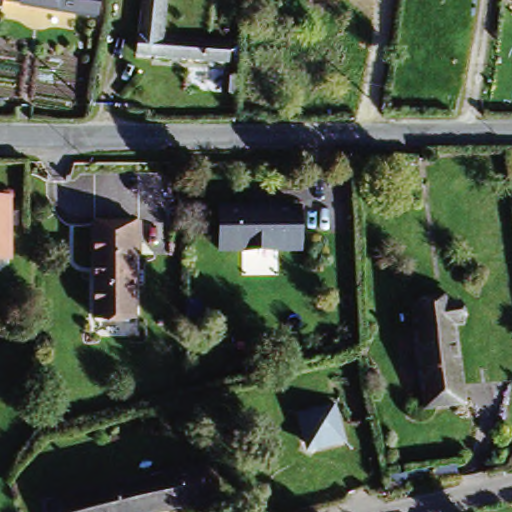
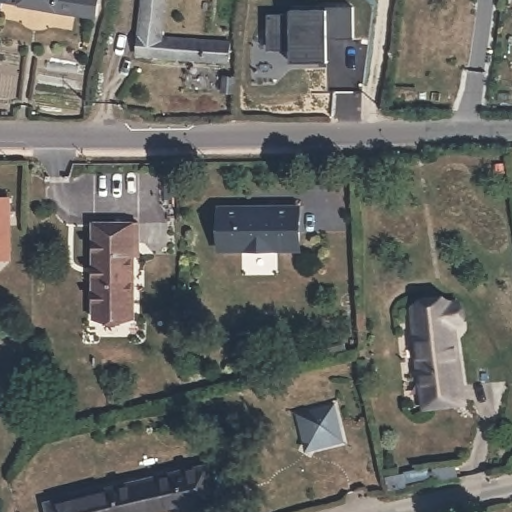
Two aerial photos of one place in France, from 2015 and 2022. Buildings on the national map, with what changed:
unchanged [(0,13),(0,0),(100,0),(96,20),(2,5),(0,13)]
unchanged [(231,46),(229,67),(138,60),(143,0),(165,0),(161,42),(231,46)]
new [(296,11),(296,7),(331,7),(331,5),(358,5),(358,37),(323,37),(323,60),(295,60),(295,47),(272,47),(271,12),(296,11)]
unchanged [(13,193),(13,253),(0,253),(0,193),(13,193)]
unchanged [(249,207),(249,211),(269,211),(269,207),(299,207),(299,250),(277,250),(276,245),(241,245),(241,250),(219,250),(219,208),(249,207)]
unchanged [(134,223),(134,243),(129,243),(129,318),(88,318),(88,223),(134,223)]
unchanged [(411,303),(453,297),(456,317),(447,320),(452,364),(454,397),(423,401),(411,303)]
unchanged [(334,403),(344,443),(314,450),(302,441),(295,412),(334,403)]
unchanged [(46,505),(93,493),(208,466),(214,502),(183,508),(183,506),(159,512),(48,512),(46,505)]

